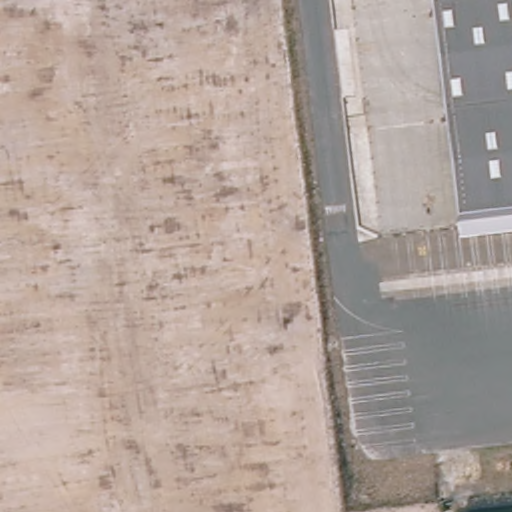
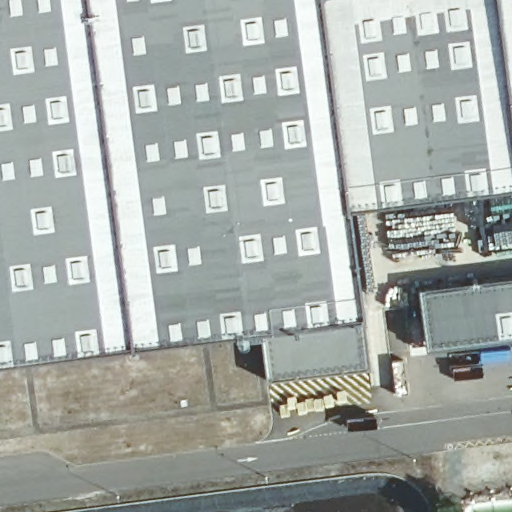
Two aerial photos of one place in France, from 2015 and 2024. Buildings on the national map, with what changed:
new [(350,203),(364,313),(370,365),(272,379),(261,325),(0,358),(0,0),(512,0),(512,184),(350,203)]
demolished [(424,0),(512,0),(512,221),(452,229),(424,0)]
new [(512,272),(512,334),(483,338),(476,277),(512,272)]
new [(476,277),(483,338),(430,345),(422,284),(476,277)]

